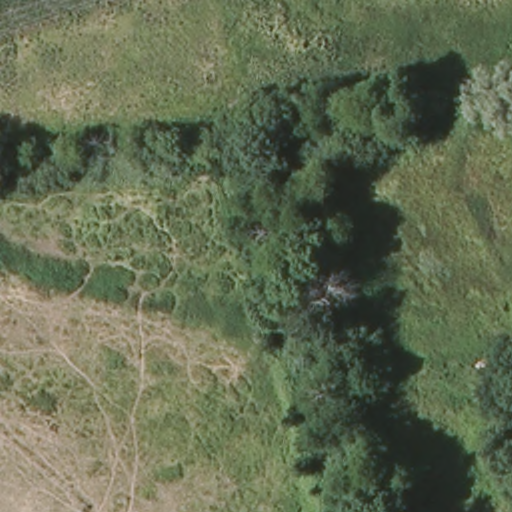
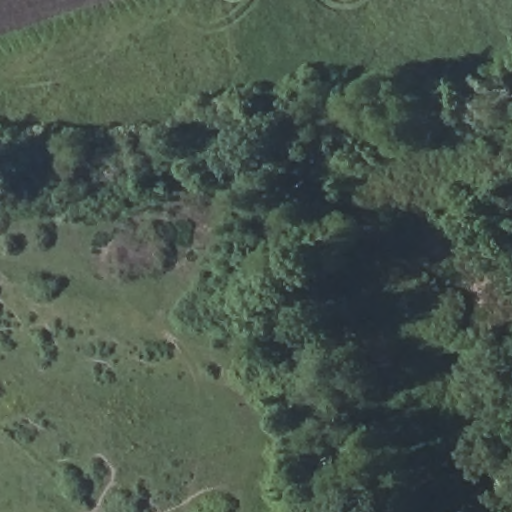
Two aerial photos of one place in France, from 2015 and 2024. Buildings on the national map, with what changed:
[]

